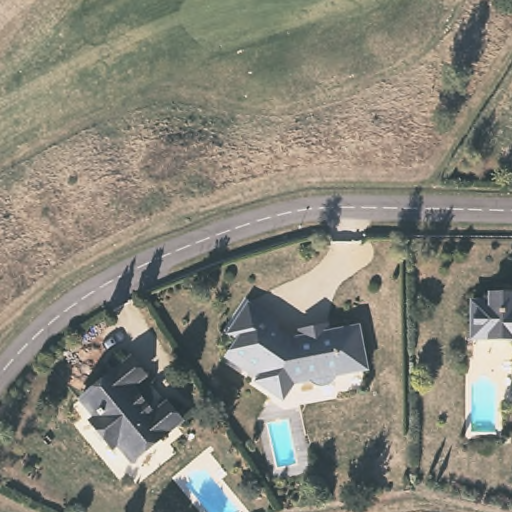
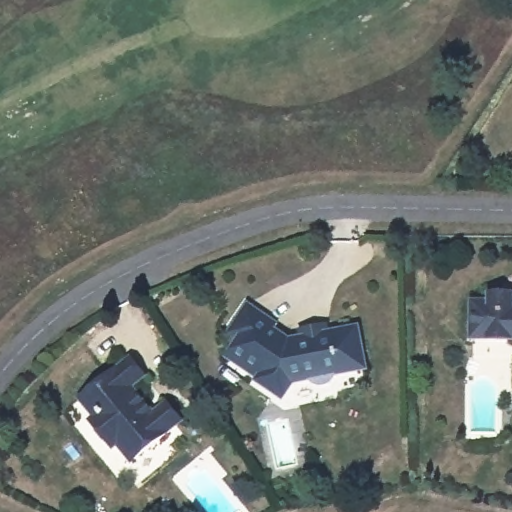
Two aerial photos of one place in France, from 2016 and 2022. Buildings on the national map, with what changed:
unchanged [(498,333),(498,331),(480,331),(480,295),(498,295),(498,286),(512,286),(512,333),(498,333)]
unchanged [(281,325),(296,335),(306,332),(305,327),(337,318),(338,323),(367,318),(375,361),(345,367),(339,377),(327,378),(317,374),(301,378),(290,395),(263,377),(265,374),(232,352),(243,336),(235,330),(254,300),(285,320),(281,325)]
unchanged [(143,373),(131,383),(154,410),(165,401),(180,417),(130,458),(117,442),(112,447),(88,417),(92,412),(80,397),(129,356),(143,373)]

